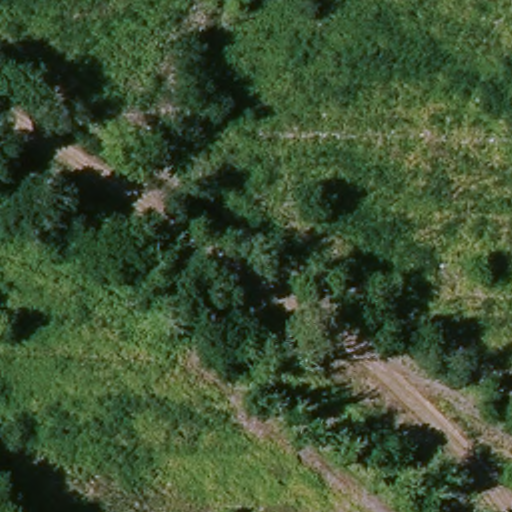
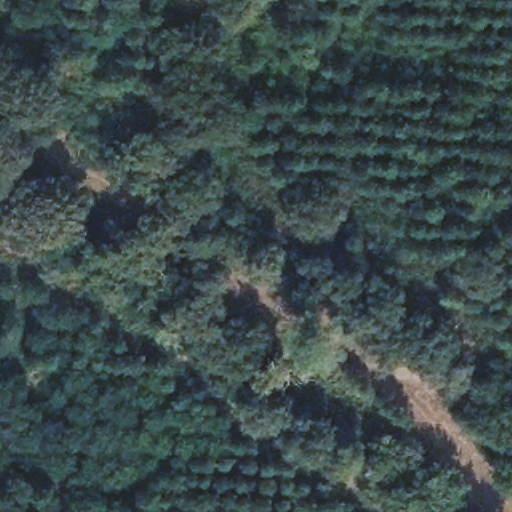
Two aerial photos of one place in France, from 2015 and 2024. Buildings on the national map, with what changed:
[]

